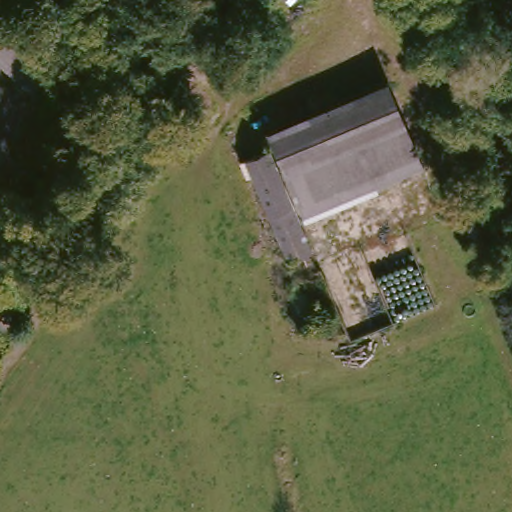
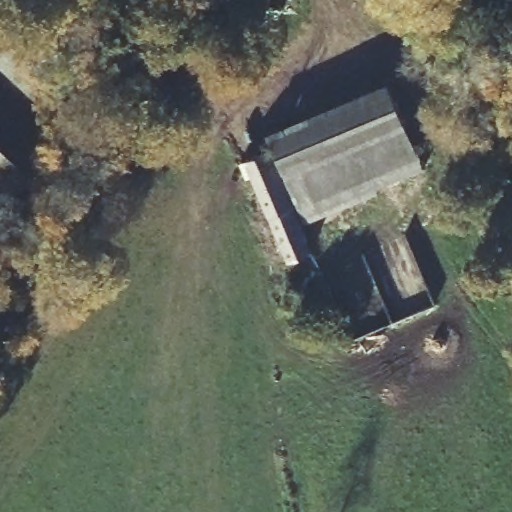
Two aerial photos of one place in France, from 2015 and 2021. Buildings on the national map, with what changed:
unchanged [(62,134),(0,78),(0,23),(87,102),(62,134)]
unchanged [(5,198),(0,193),(0,78),(62,134),(5,198)]
unchanged [(282,169),(267,124),(381,91),(395,135),(282,169)]
unchanged [(409,174),(295,208),(282,169),(395,135),(409,174)]
unchanged [(296,239),(265,248),(233,150),(263,141),(296,239)]
unchanged [(0,212),(2,210),(22,227),(1,252),(0,251),(0,212)]

